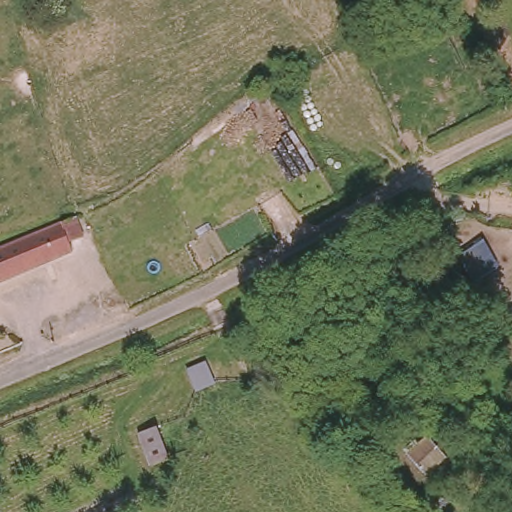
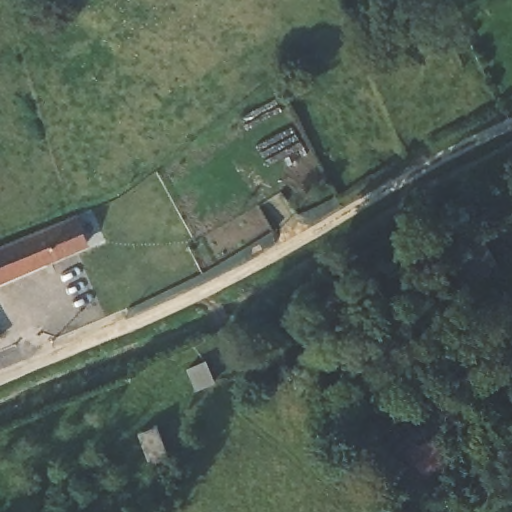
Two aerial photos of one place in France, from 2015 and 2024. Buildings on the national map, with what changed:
unchanged [(70,218),(70,219),(75,234),(64,242),(68,250),(0,283),(0,252),(7,248),(70,218)]
unchanged [(251,362),(210,377),(205,364),(245,347),(251,362)]
unchanged [(153,420),(170,451),(152,462),(135,427),(153,420)]
unchanged [(426,429),(453,463),(432,483),(401,451),(426,429)]

